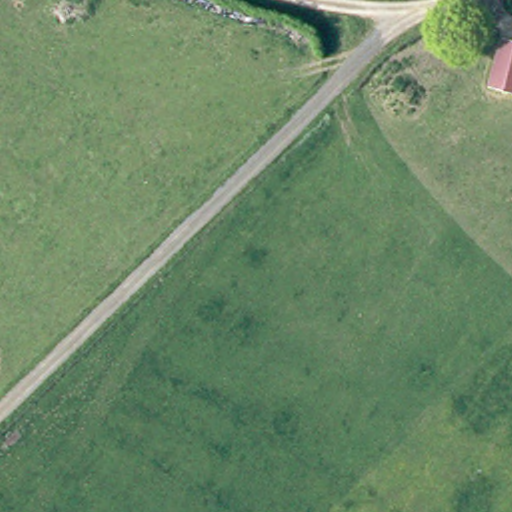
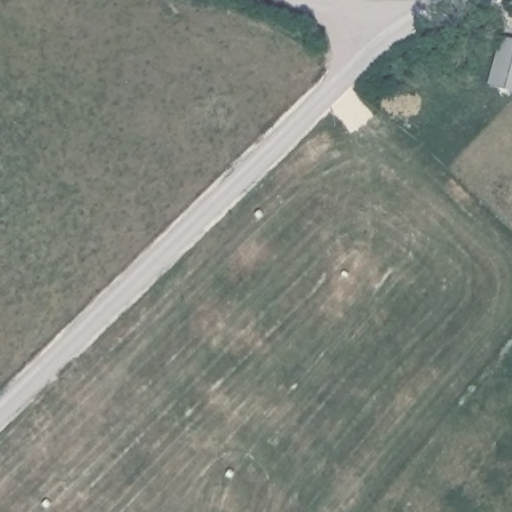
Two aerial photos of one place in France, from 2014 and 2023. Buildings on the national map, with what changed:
unchanged [(512,89),(490,84),(503,35),(512,37),(512,89)]

